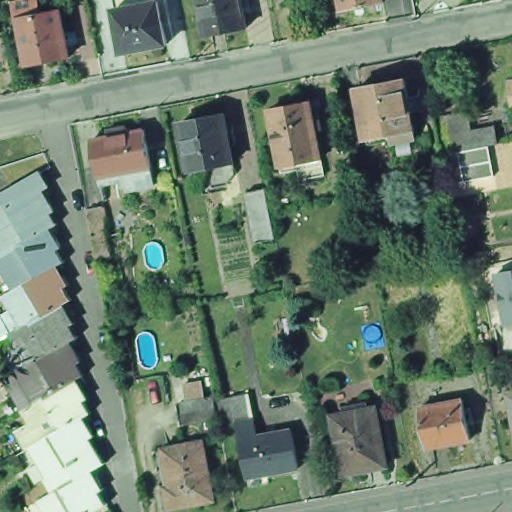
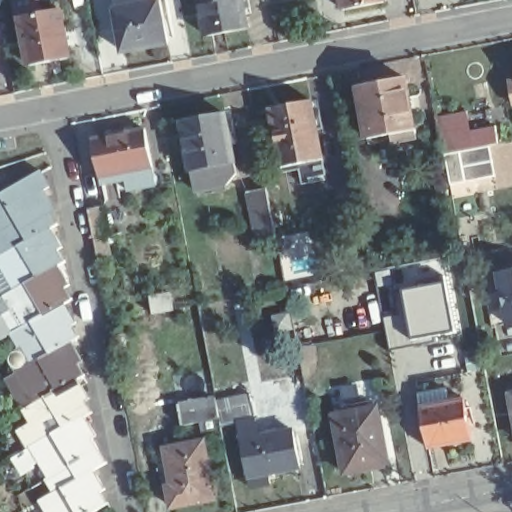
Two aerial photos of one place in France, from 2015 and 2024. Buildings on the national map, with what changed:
unchanged [(124,55),(115,13),(113,0),(168,0),(168,5),(172,24),(165,26),(170,47),(124,55)]
unchanged [(249,26),(209,34),(203,0),(245,0),(249,26)]
unchanged [(380,1),(341,8),(339,0),(379,0),(380,1)]
unchanged [(30,66),(21,20),(18,20),(15,5),(35,1),(37,16),(62,11),(71,58),(30,66)]
unchanged [(391,161),(387,140),(385,131),(365,135),(355,85),(401,76),(412,136),(416,156),(391,161)]
unchanged [(310,177),(307,160),(287,164),(276,107),(316,99),(327,157),(330,173),(310,177)]
unchanged [(494,142),(440,153),(436,137),(432,117),(462,111),(466,131),(491,126),(494,142)]
unchanged [(235,117),(244,166),(202,174),(193,125),(235,117)]
unchanged [(94,142),(119,137),(145,132),(152,169),(126,174),(101,179),(94,142)]
unchanged [(485,145),(490,175),(446,183),(441,153),(485,145)]
unchanged [(9,254),(0,238),(0,201),(43,175),(51,188),(45,192),(56,212),(51,215),(58,226),(0,260),(0,258),(9,254)]
unchanged [(254,223),(249,196),(268,193),(273,219),(277,243),(258,246),(254,223)]
unchanged [(103,259),(100,240),(95,212),(108,209),(113,237),(117,257),(103,259)]
unchanged [(3,297),(15,290),(0,264),(0,260),(58,226),(59,228),(55,230),(65,249),(60,252),(65,263),(5,299),(3,297)]
unchanged [(10,336),(21,329),(5,299),(65,263),(67,266),(62,268),(71,286),(65,290),(72,301),(11,337),(10,336)]
unchanged [(498,273),(512,270),(512,326),(506,327),(498,273)]
new [(453,333),(433,335),(435,346),(387,352),(382,319),(401,316),(400,291),(443,284),(453,333)]
unchanged [(74,345),(84,364),(78,367),(83,378),(22,414),(22,413),(22,412),(5,383),(17,376),(16,375),(17,374),(7,357),(18,350),(11,337),(72,301),(73,303),(68,305),(78,324),(72,327),(78,340),(80,342),(74,345)]
unchanged [(31,428),(22,414),(83,378),(85,382),(81,384),(91,401),(85,404),(91,416),(32,451),(31,450),(33,449),(24,432),(31,428)]
unchanged [(512,390),(512,420),(506,392),(512,390)]
unchanged [(250,476),(243,437),(241,427),(224,430),(221,416),(183,423),(178,400),(217,394),(220,406),(254,399),(257,416),(260,433),(295,426),(302,466),(271,472),(273,481),(252,485),(250,476)]
unchanged [(389,459),(347,467),(336,409),(380,401),(389,459)]
unchanged [(430,449),(422,410),(465,402),(466,410),(473,409),(475,421),(468,422),(472,442),(430,449)]
unchanged [(32,451),(91,416),(93,418),(87,421),(98,441),(93,443),(106,466),(83,480),(75,467),(50,481),(32,451)]
unchanged [(164,487),(156,450),(168,447),(206,440),(217,496),(175,504),(171,486),(164,487)]
unchanged [(96,474),(107,494),(102,496),(110,508),(102,512),(44,512),(40,505),(54,497),(47,484),(50,482),(50,481),(75,467),(83,480),(106,466),(107,468),(96,474)]

